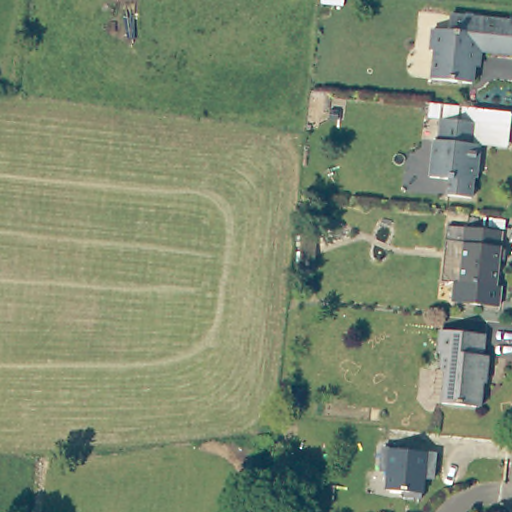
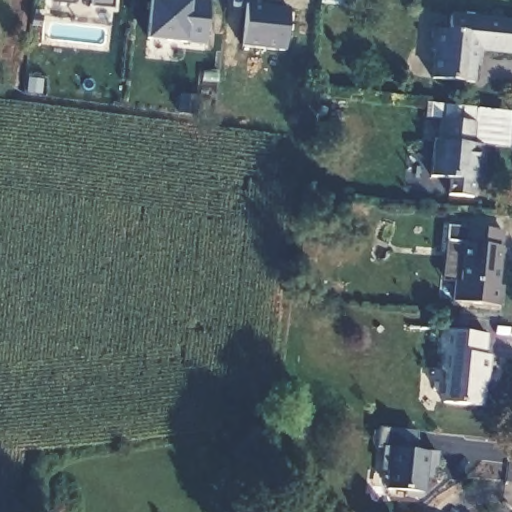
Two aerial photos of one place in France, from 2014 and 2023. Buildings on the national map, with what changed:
new [(73,1),(57,0),(73,0),(73,1)]
new [(113,6),(92,4),(92,0),(113,0),(113,6)]
new [(205,44),(186,42),(146,38),(151,0),(187,0),(209,0),(205,44)]
new [(247,4),(289,7),(286,51),(243,45),(247,4)]
unchanged [(512,17),(512,50),(484,47),(478,51),(475,80),(433,76),(437,47),(432,46),(434,25),(451,27),(453,10),(512,17)]
unchanged [(472,140),(479,141),(477,161),(474,160),(470,194),(446,191),(448,175),(429,172),(433,135),(438,136),(441,114),(424,112),(427,98),(434,99),(477,104),(473,140),(472,140)]
unchanged [(512,109),(507,144),(473,140),(477,104),(512,109)]
unchanged [(502,230),(499,250),(504,251),(504,258),(498,257),(495,283),(500,283),(498,303),(453,298),(455,277),(442,276),(447,235),(465,238),(467,225),(502,230)]
unchanged [(484,330),(483,352),(487,352),(484,372),(482,371),(478,403),(439,400),(443,371),(439,365),(441,348),(436,347),(439,325),(484,330)]
unchanged [(390,448),(428,452),(437,453),(434,480),(424,479),(423,494),(384,491),(386,472),(378,471),(381,447),(390,448)]

